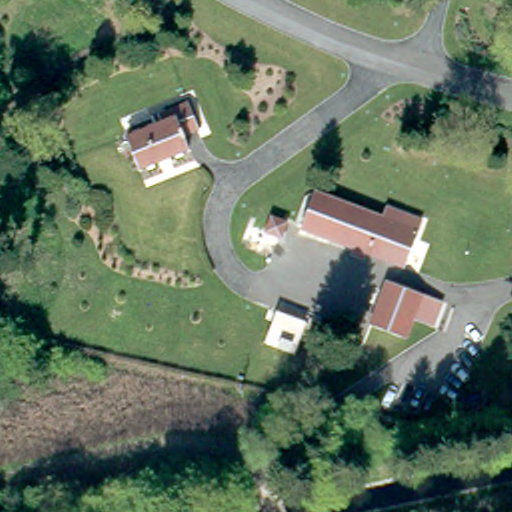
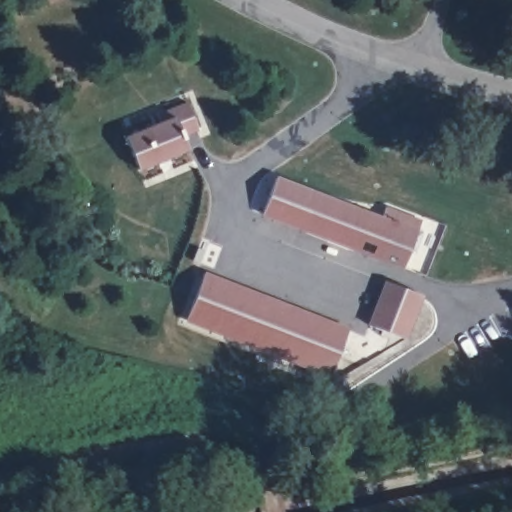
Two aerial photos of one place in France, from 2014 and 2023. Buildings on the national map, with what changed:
unchanged [(127,129),(155,119),(150,108),(186,95),(196,122),(184,127),(191,145),(140,164),(127,129)]
unchanged [(277,173),(383,211),(390,197),(425,217),(402,271),(260,212),(277,173)]
new [(330,378),(183,318),(204,269),(347,326),(330,378)]
unchanged [(375,273),(419,285),(402,337),(360,323),(375,273)]

